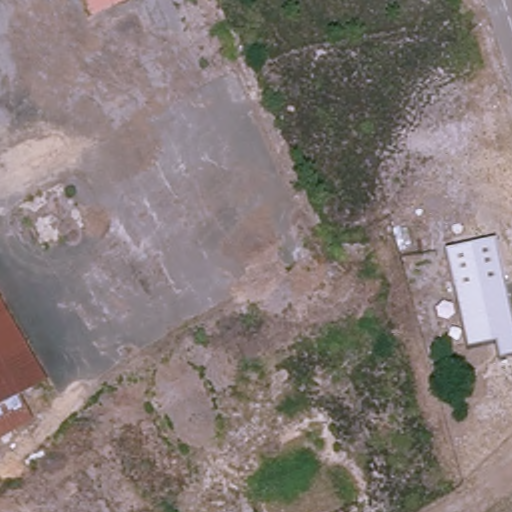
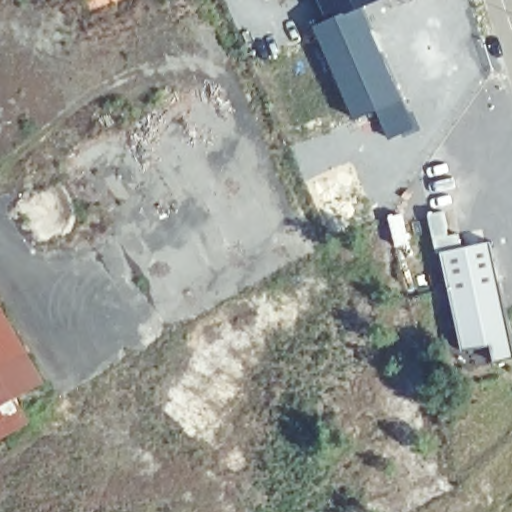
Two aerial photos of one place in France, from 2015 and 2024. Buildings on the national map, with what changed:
new [(327,19),(319,0),(383,0),(366,6),(327,19)]
new [(388,140),(377,111),(354,119),(314,25),(327,19),(366,6),(406,99),(418,129),(388,140)]
unchanged [(512,330),(512,359),(498,363),(493,345),(466,352),(444,250),(493,241),(512,330)]
unchanged [(44,380),(16,395),(0,403),(0,300),(44,380)]
unchanged [(16,395),(31,424),(0,440),(0,403),(16,395)]

